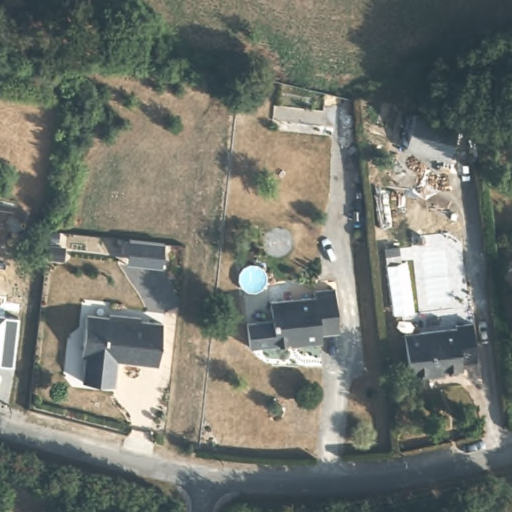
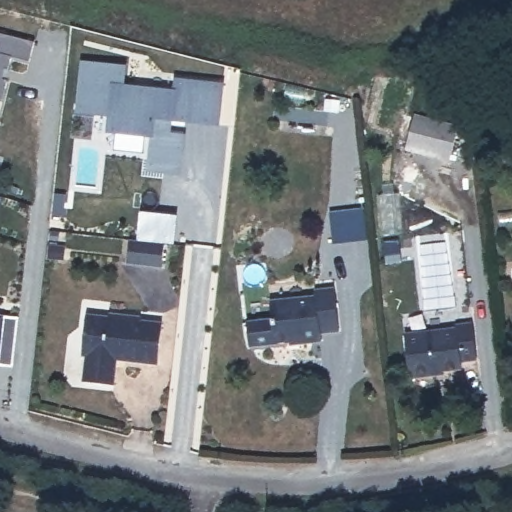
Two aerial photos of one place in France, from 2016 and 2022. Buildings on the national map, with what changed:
new [(0,34),(35,42),(29,60),(11,56),(2,101),(0,100),(0,34)]
new [(152,136),(106,131),(108,115),(76,112),(83,61),(127,65),(124,85),(176,90),(176,77),(224,82),(220,125),(171,120),(170,135),(185,135),(181,175),(147,172),(152,136)]
unchanged [(457,125),(448,159),(405,149),(414,114),(457,125)]
new [(146,267),(130,265),(132,240),(149,242),(138,241),(141,211),(177,215),(173,244),(167,244),(165,268),(146,267)]
demolished [(167,244),(165,268),(146,267),(149,242),(167,244)]
unchanged [(332,283),(336,327),(318,329),(318,336),(298,338),(297,335),(271,338),(267,297),(312,291),(312,285),(332,283)]
unchanged [(143,313),(143,317),(164,320),(160,361),(120,357),(117,382),(85,379),(88,353),(85,353),(90,312),(111,314),(111,311),(143,313)]
unchanged [(469,315),(474,353),(460,355),(460,361),(432,365),(431,368),(406,371),(401,327),(453,320),(453,317),(469,315)]
unchanged [(15,368),(0,368),(0,325),(18,325),(15,368)]

